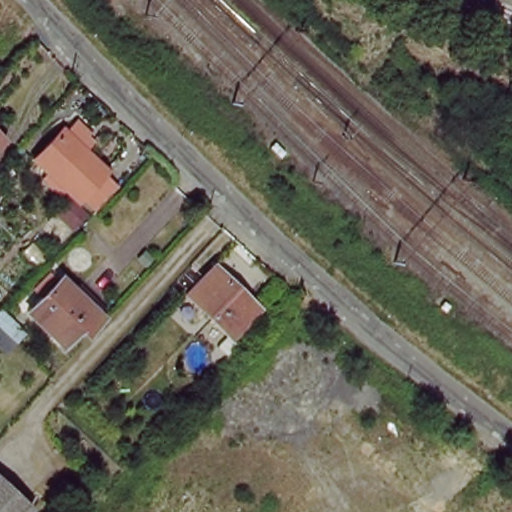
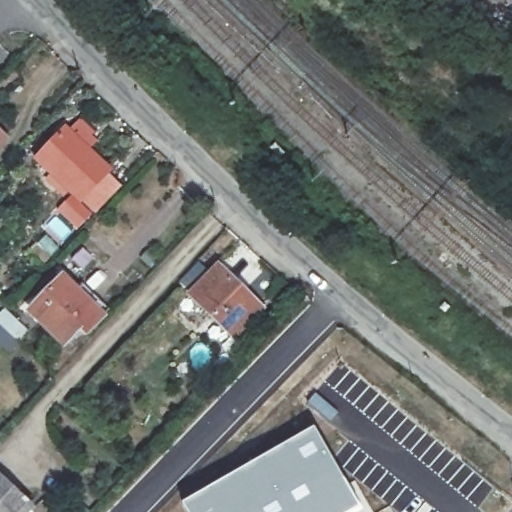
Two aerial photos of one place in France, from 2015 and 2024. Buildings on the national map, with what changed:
unchanged [(83,181),(81,185),(75,179),(70,174),(65,179),(45,160),(50,155),(36,141),(65,112),(68,115),(80,105),(92,117),(87,122),(90,124),(93,127),(89,131),(87,134),(103,150),(109,155),(107,157),(121,172),(98,196),(83,181)]
unchanged [(12,140),(0,153),(0,129),(12,140)]
unchanged [(69,185),(73,180),(89,197),(77,210),(60,194),(69,185)]
unchanged [(222,270),(265,310),(238,338),(195,296),(222,270)]
unchanged [(77,328),(62,345),(28,312),(62,277),(75,290),(80,285),(81,283),(108,310),(107,311),(102,316),(85,335),(77,328)]
unchanged [(22,340),(15,348),(5,358),(0,354),(0,319),(22,340)]
new [(362,510),(358,512),(185,512),(180,503),(314,427),(362,510)]
unchanged [(26,512),(0,512),(0,470),(35,501),(26,512)]
demolished [(499,476),(512,486),(512,488),(494,512),(492,512),(480,502),(499,476)]
unchanged [(72,512),(63,502),(72,492),(91,511),(90,512),(72,512)]

